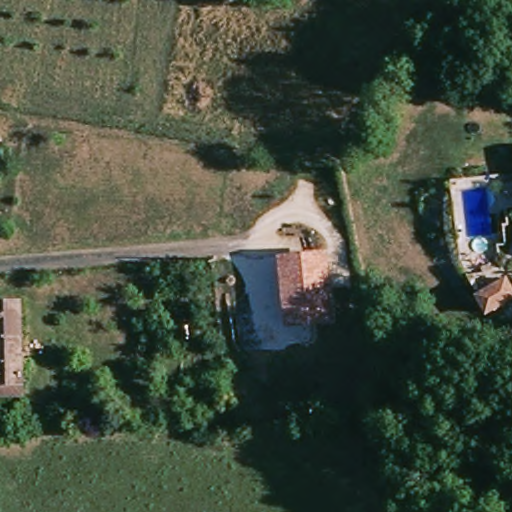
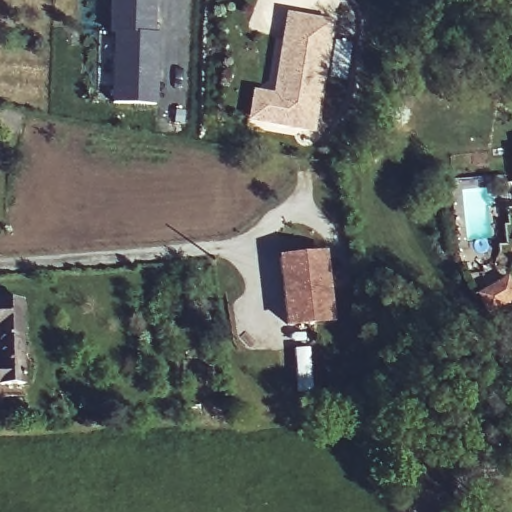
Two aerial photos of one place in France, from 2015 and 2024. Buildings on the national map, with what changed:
new [(108,0),(155,0),(155,31),(112,32),(107,32),(108,0)]
new [(313,131),(247,121),(250,89),(267,78),(275,33),(284,34),(288,13),(332,20),(313,131)]
new [(112,32),(155,31),(164,32),(159,103),(111,102),(112,32)]
unchanged [(328,250),(337,321),(285,327),(277,256),(328,250)]
new [(512,289),(512,295),(486,311),(476,294),(505,277),(512,289)]
unchanged [(17,304),(19,393),(0,393),(0,305),(17,304)]

